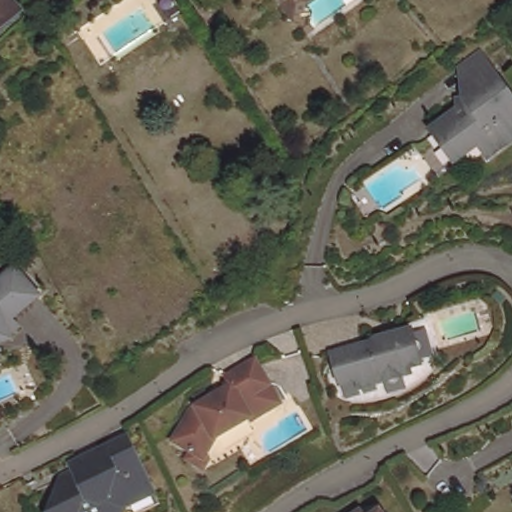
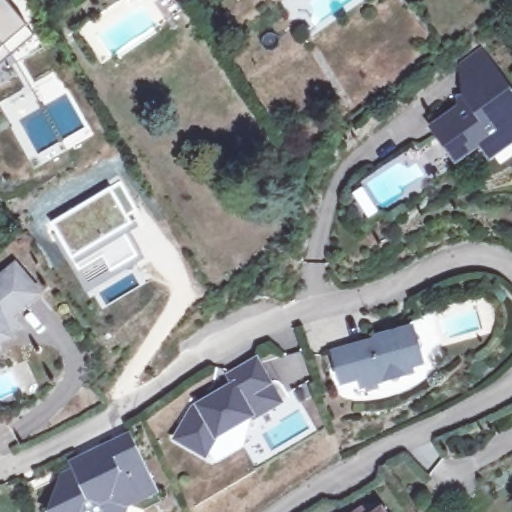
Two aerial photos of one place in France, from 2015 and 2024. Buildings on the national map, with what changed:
demolished [(27,14),(0,38),(0,0),(14,0),(27,14)]
new [(36,32),(11,53),(0,40),(0,0),(8,0),(36,32)]
new [(11,53),(0,62),(0,40),(11,53)]
unchanged [(459,105),(458,92),(467,91),(465,74),(462,60),(482,46),(490,57),(512,89),(512,128),(512,129),(512,135),(490,150),(481,137),(465,147),(457,154),(447,141),(434,123),(459,105)]
new [(92,194),(119,175),(139,208),(136,210),(143,223),(131,231),(143,255),(87,290),(47,220),(92,194)]
unchanged [(366,183),(383,209),(369,218),(352,192),(366,183)]
unchanged [(0,349),(0,280),(1,279),(18,264),(42,292),(28,304),(14,317),(22,325),(14,332),(15,336),(1,342),(4,347),(0,349)]
unchanged [(359,378),(342,383),(334,352),(372,341),(373,339),(374,336),(377,335),(380,335),(383,336),(384,339),(394,336),(394,332),(411,327),(422,363),(410,366),(412,372),(406,374),(385,380),(362,387),(359,378)]
unchanged [(205,464),(188,454),(194,445),(175,434),(189,411),(199,405),(198,402),(202,400),(201,398),(197,392),(206,387),(210,392),(211,394),(234,380),(230,372),(258,357),(283,400),(254,416),(253,413),(217,433),(206,452),(211,454),(205,464)]
unchanged [(58,487),(63,489),(65,484),(77,478),(72,467),(71,466),(112,446),(128,438),(140,464),(160,505),(159,505),(146,512),(138,512),(133,510),(134,508),(127,506),(124,512),(50,512),(55,497),(58,487)]

